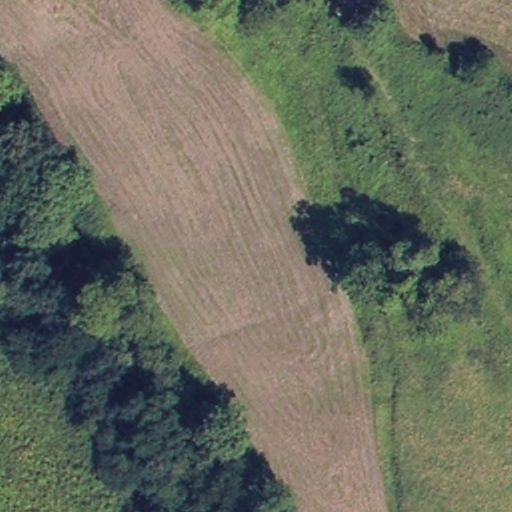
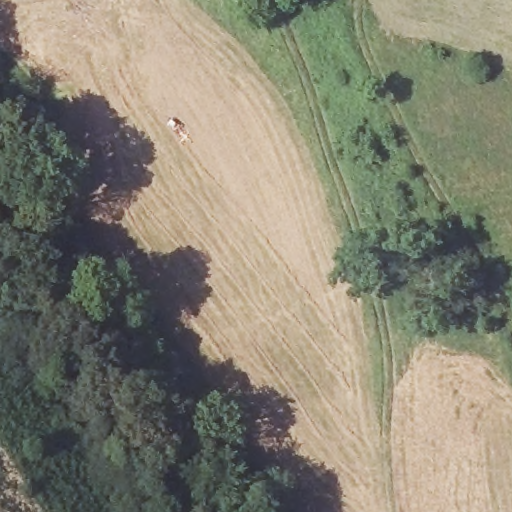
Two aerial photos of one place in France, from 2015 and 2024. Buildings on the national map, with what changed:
[]

